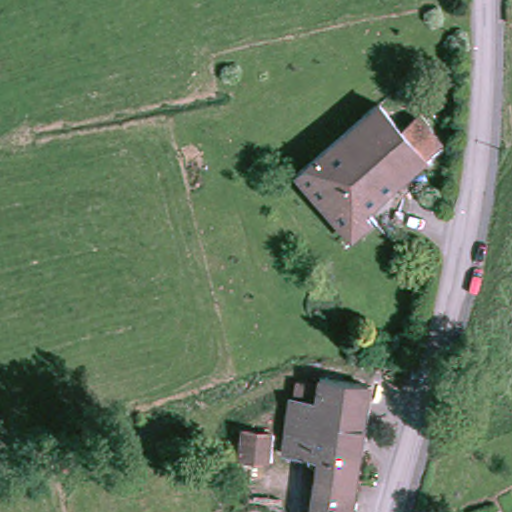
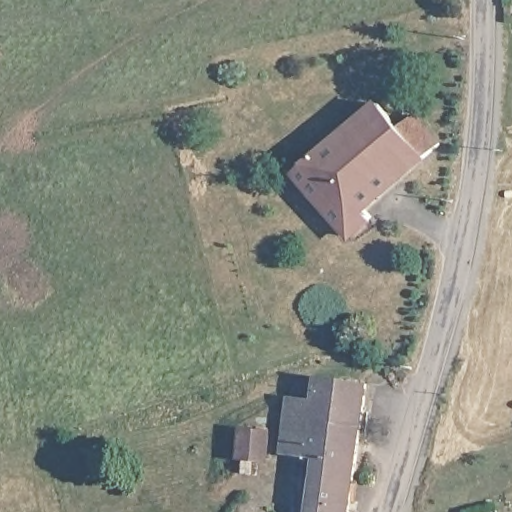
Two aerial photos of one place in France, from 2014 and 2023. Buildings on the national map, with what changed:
unchanged [(358,239),(352,232),(307,180),(389,109),(405,128),(423,114),(450,145),(371,215),(377,222),(358,239)]
unchanged [(320,462),(290,458),(299,386),(322,389),(322,379),(368,385),(357,481),(319,477),(320,462)]
unchanged [(250,466),(253,441),(276,443),(274,470),(250,466)]
unchanged [(319,477),(357,481),(353,512),(314,512),(319,477)]

